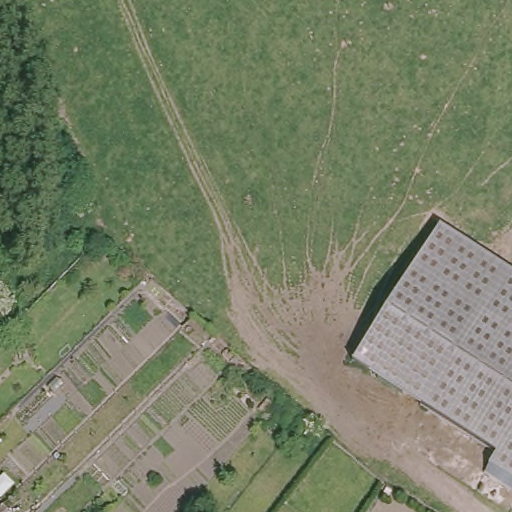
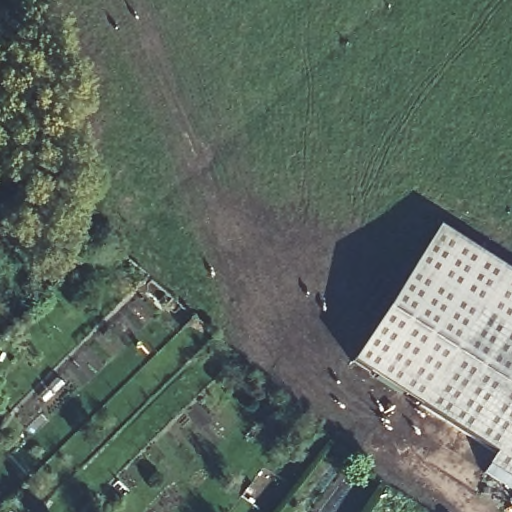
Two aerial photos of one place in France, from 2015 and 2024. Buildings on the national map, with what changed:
unchanged [(495,472),(485,464),(492,452),(351,357),(442,222),(512,270),(512,483),(495,472)]

